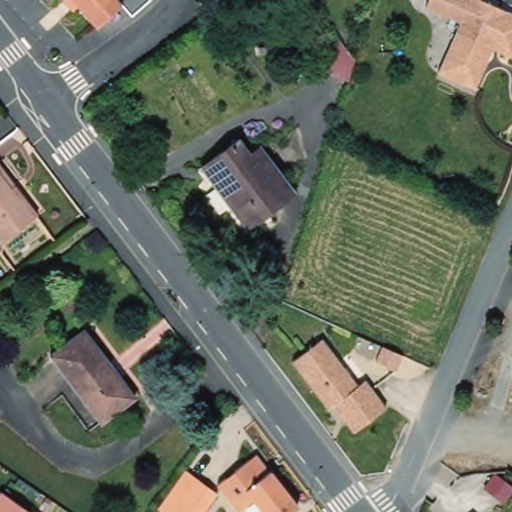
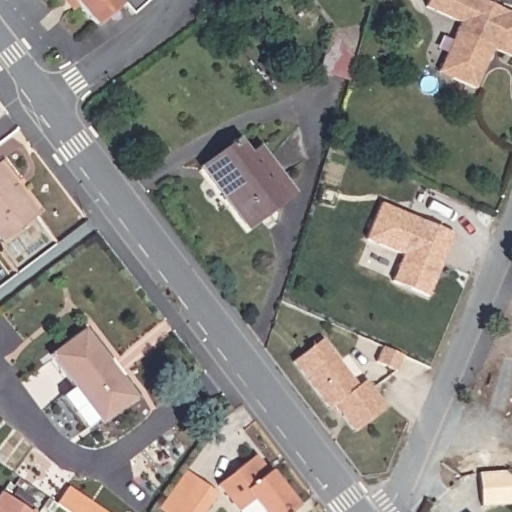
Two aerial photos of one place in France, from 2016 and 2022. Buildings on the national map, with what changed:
unchanged [(122,6),(97,28),(73,0),(126,0),(127,2),(122,6)]
unchanged [(126,0),(147,0),(132,16),(122,6),(127,2),(126,0)]
unchanged [(461,21),(425,6),(428,0),(486,0),(512,11),(512,56),(493,47),(475,88),(457,80),(439,71),(444,60),(461,21)]
unchanged [(351,84),(313,74),(321,36),(358,49),(351,84)]
unchanged [(269,217),(264,211),(244,226),(199,171),(238,143),(249,161),(260,152),(294,195),(269,217)]
unchanged [(41,212),(0,244),(0,243),(0,161),(41,212)]
new [(426,295),(390,279),(402,252),(365,236),(381,200),(454,233),(445,253),(441,262),(426,295)]
unchanged [(138,396),(105,421),(51,355),(84,331),(138,396)]
unchanged [(360,387),(370,380),(388,406),(353,430),(337,408),(332,412),(294,360),(324,339),(360,387)]
unchanged [(254,499),(237,512),(217,484),(251,459),(258,454),(272,472),(301,509),(298,512),(265,512),(254,499)]
unchanged [(203,483),(221,496),(211,512),(183,512),(203,483)]
unchanged [(34,512),(0,512),(0,491),(1,490),(34,512)]

